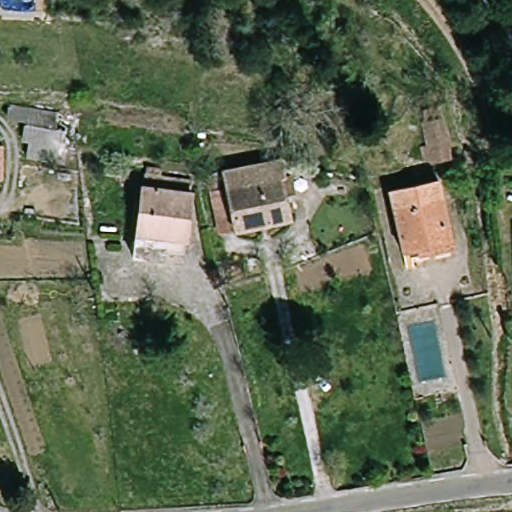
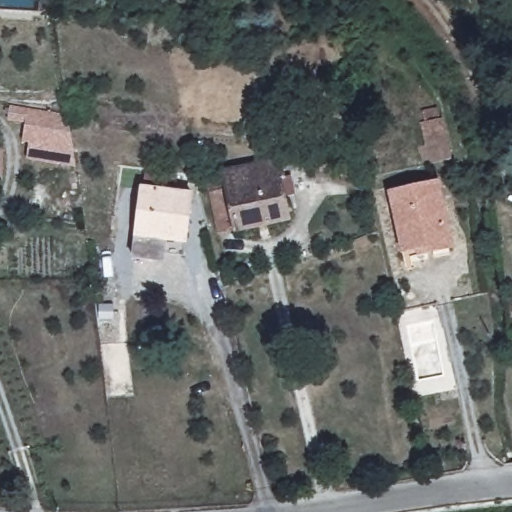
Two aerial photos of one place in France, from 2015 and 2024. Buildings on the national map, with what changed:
unchanged [(72,149),(70,157),(21,149),(24,131),(16,130),(17,122),(4,120),(6,107),(66,117),(77,119),(72,149)]
unchanged [(429,155),(421,119),(445,113),(455,157),(456,165),(443,167),(432,170),(429,155)]
unchanged [(7,147),(6,181),(0,180),(0,146),(7,147)]
unchanged [(228,156),(298,162),(295,192),(291,191),(286,235),(220,227),(228,156)]
unchanged [(390,189),(442,178),(456,242),(403,252),(390,189)]
unchanged [(167,260),(166,266),(138,262),(141,237),(137,237),(145,182),(193,189),(185,246),(183,262),(167,260)]

